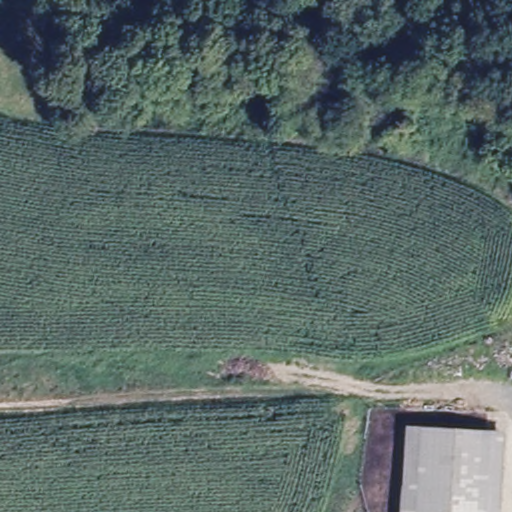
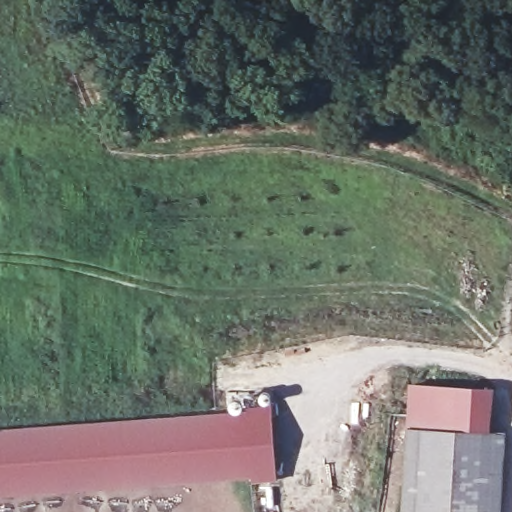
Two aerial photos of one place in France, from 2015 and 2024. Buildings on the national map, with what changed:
new [(409,384),(492,387),(489,434),(483,434),(406,430),(409,384)]
new [(230,403),(231,401),(233,398),(237,396),(247,392),(265,391),(269,392),(272,394),(272,398),(276,481),(252,481),(251,477),(0,495),(0,427),(230,407),(230,403)]
unchanged [(406,430),(483,434),(487,512),(398,512),(406,430)]
unchanged [(499,434),(500,512),(487,512),(483,434),(499,434)]

